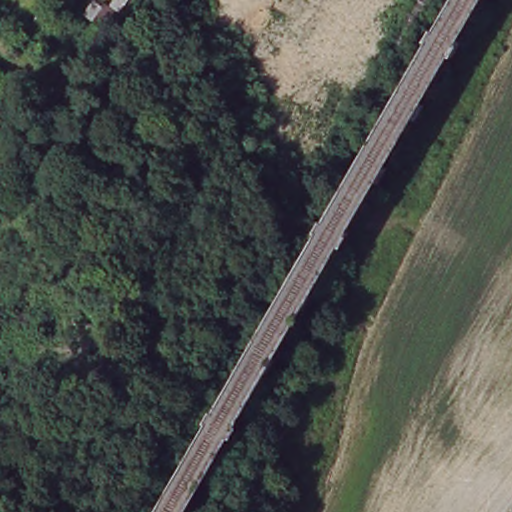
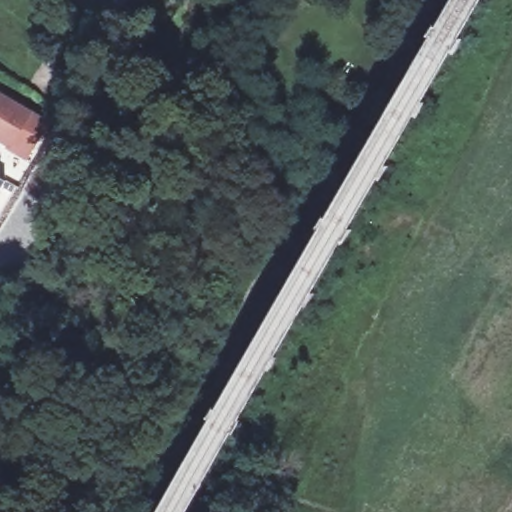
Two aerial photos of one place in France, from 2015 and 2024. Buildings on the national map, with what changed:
new [(47,123),(26,157),(10,147),(11,145),(0,138),(0,95),(47,123)]
new [(8,181),(0,194),(0,176),(8,181)]

